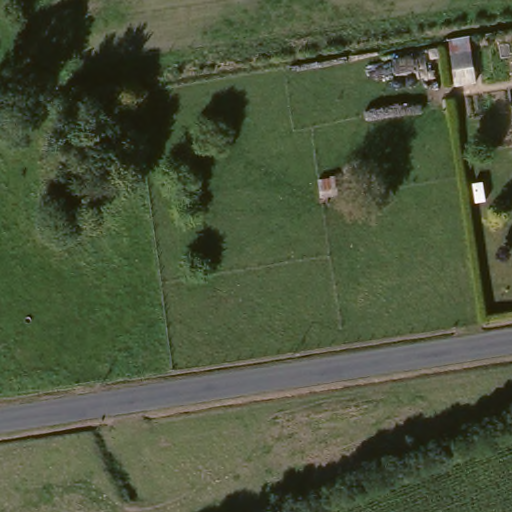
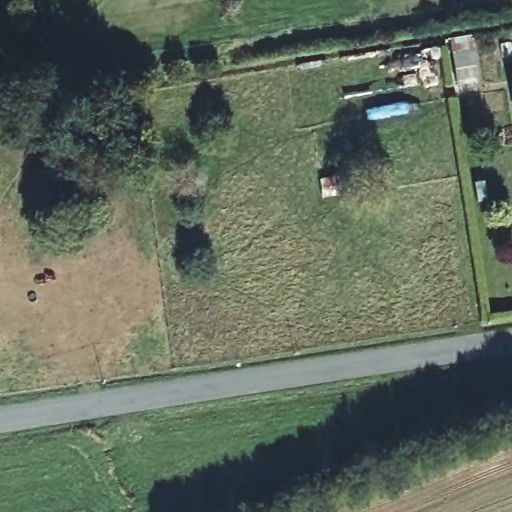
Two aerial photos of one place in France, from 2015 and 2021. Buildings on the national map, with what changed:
unchanged [(475,67),(455,71),(452,55),(472,52),(475,67)]
unchanged [(320,181),(337,177),(339,195),(322,198),(320,181)]

